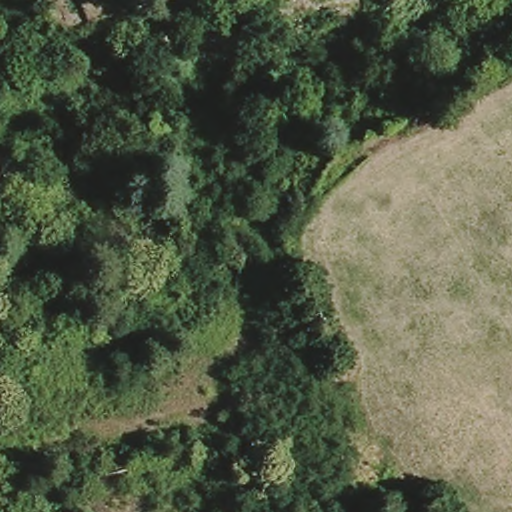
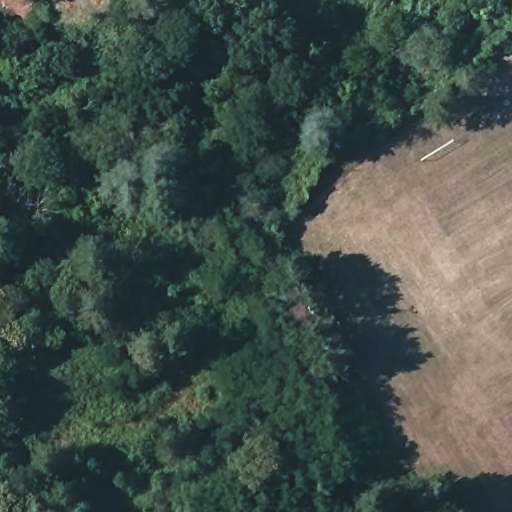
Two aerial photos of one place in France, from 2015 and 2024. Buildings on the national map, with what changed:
unchanged [(255,338),(237,335),(240,316),(259,318),(255,338)]

